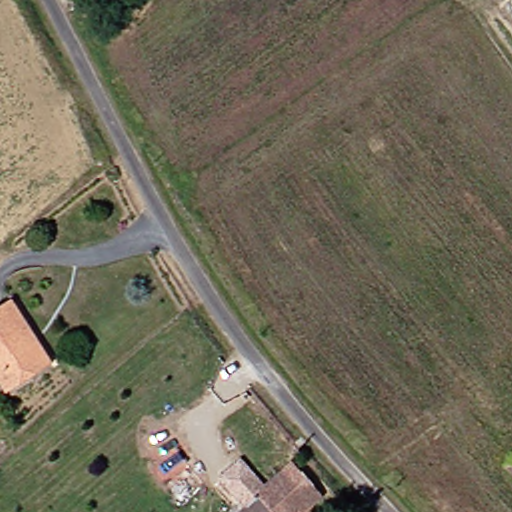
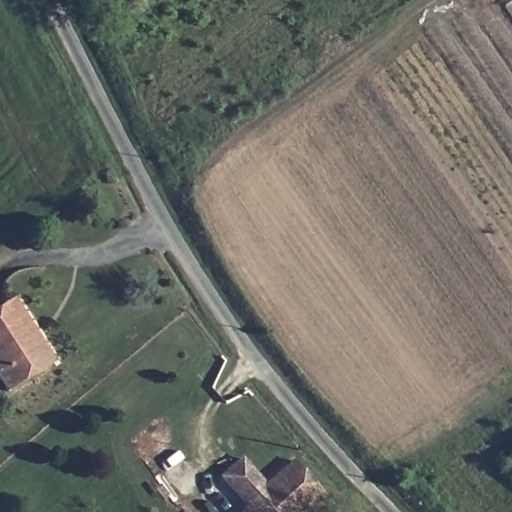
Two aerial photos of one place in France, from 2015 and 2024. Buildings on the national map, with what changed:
unchanged [(18,387),(0,359),(0,309),(15,300),(23,295),(50,337),(63,357),(18,387)]
unchanged [(325,499),(310,512),(272,512),(260,497),(245,510),(220,480),(243,458),(254,470),(257,467),(265,479),(289,461),(325,499)]
unchanged [(260,497),(272,512),(243,512),(245,510),(260,497)]

